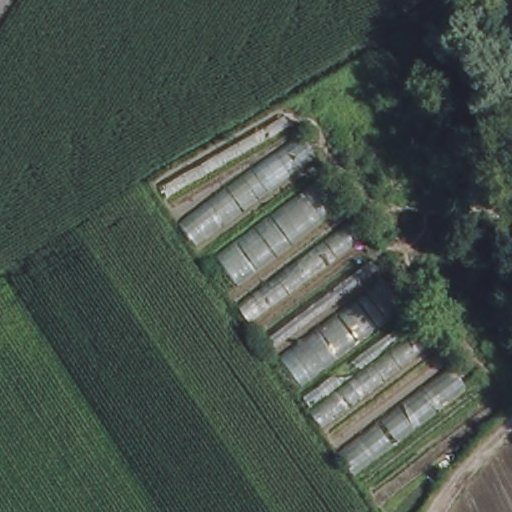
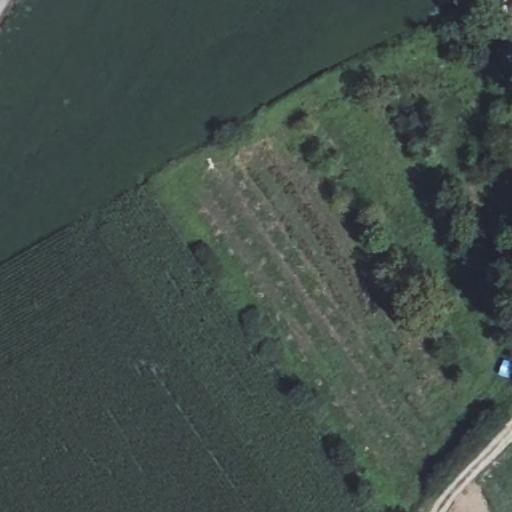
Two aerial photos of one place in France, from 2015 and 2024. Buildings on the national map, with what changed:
demolished [(305,121),(482,393),(359,482),(178,218),(305,121)]

